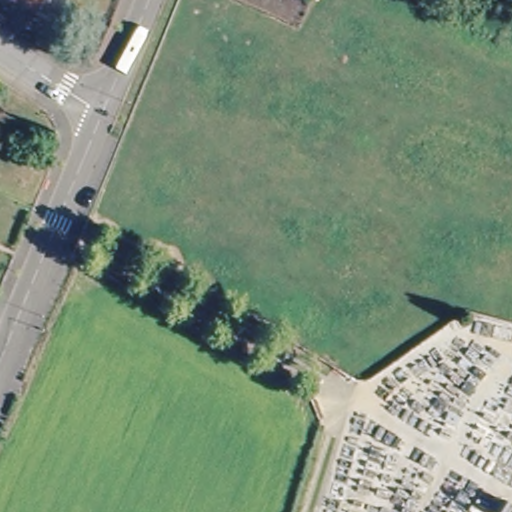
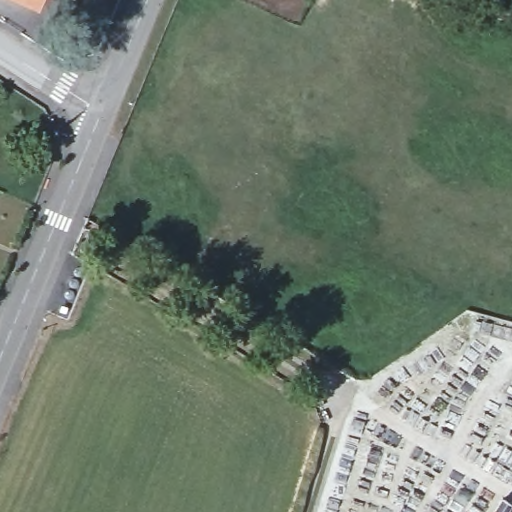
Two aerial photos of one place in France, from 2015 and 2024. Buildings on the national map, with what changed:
unchanged [(18,0),(40,0),(37,7),(18,0)]

